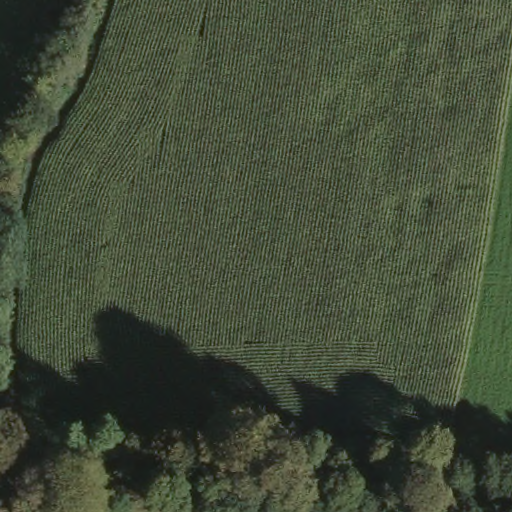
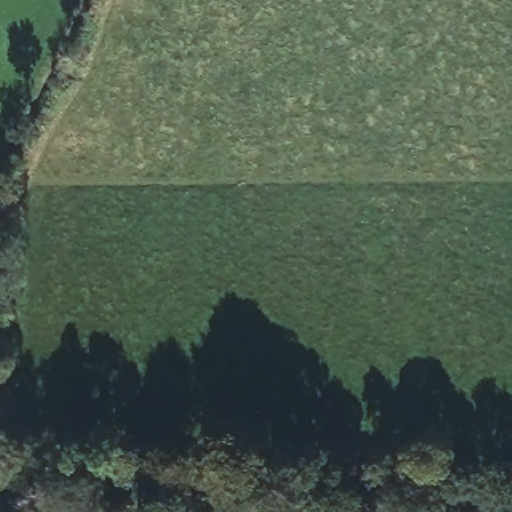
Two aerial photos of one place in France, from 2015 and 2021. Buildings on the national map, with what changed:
[]

